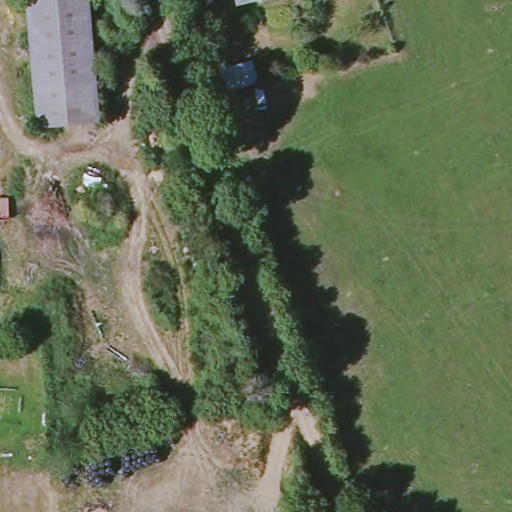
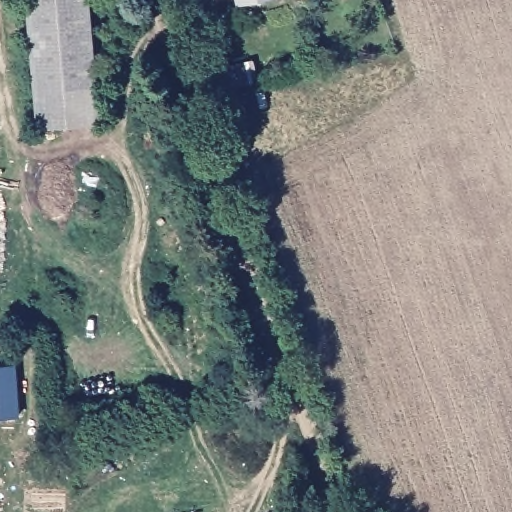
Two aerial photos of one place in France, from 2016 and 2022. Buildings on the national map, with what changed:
unchanged [(28,0),(90,0),(100,121),(39,126),(28,0)]
unchanged [(238,0),(249,0),(245,1),(239,2),(238,0)]
new [(13,372),(15,422),(0,422),(0,372),(13,372)]

